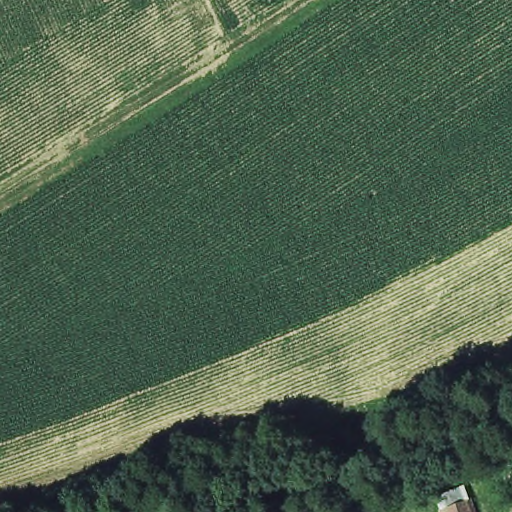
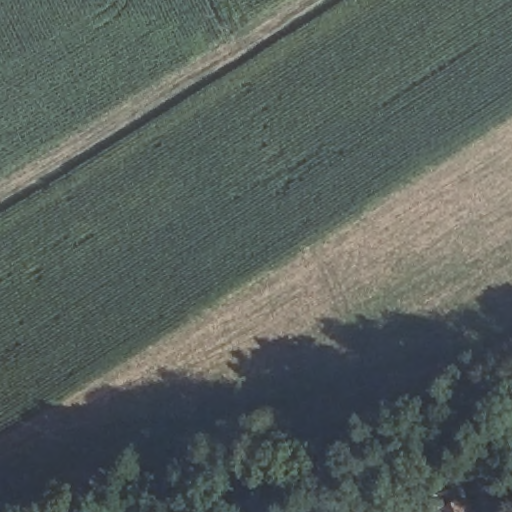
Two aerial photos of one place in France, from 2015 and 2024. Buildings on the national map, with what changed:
unchanged [(465,484),(473,512),(439,512),(434,493),(465,484)]

